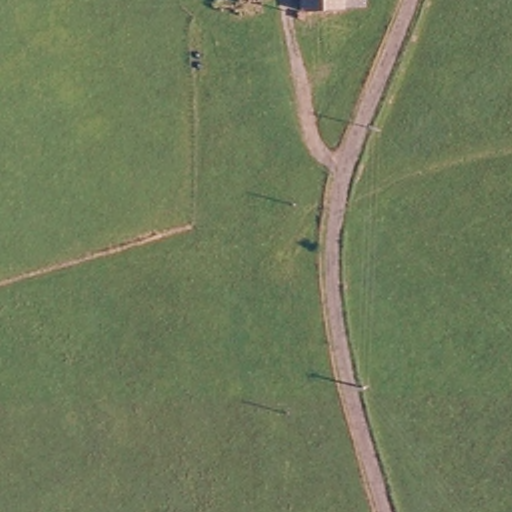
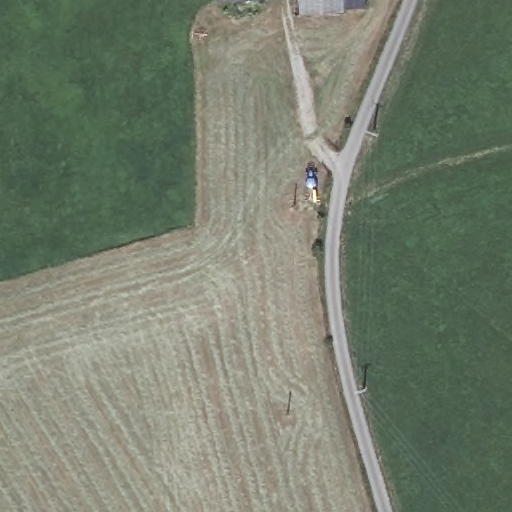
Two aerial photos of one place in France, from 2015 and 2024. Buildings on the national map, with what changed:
unchanged [(231,0),(265,0),(265,2),(231,0)]
unchanged [(310,9),(307,0),(371,0),(371,3),(310,9)]

